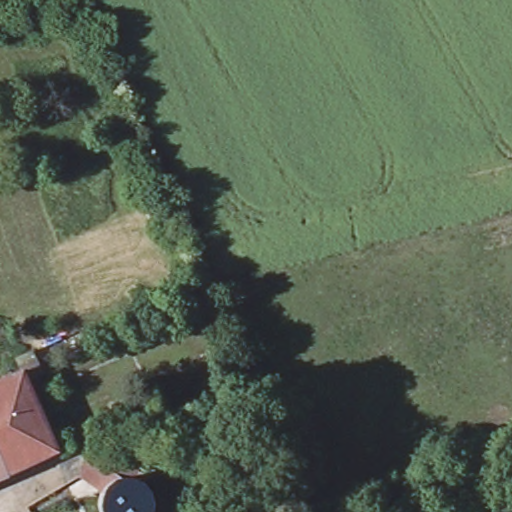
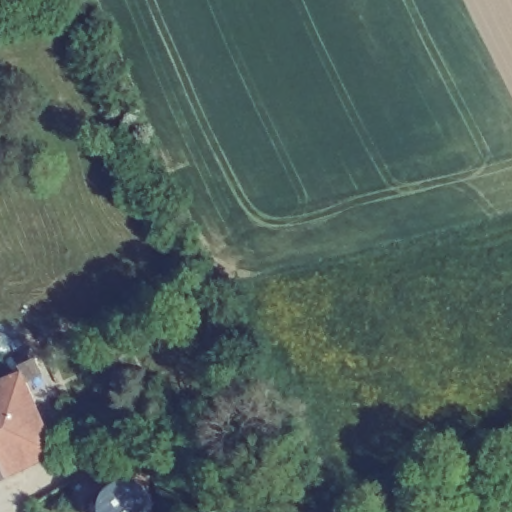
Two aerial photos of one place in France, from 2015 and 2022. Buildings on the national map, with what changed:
unchanged [(0,383),(21,374),(17,367),(33,360),(42,379),(26,385),(57,454),(4,475),(0,467),(0,383)]
unchanged [(150,498),(152,506),(152,512),(100,512),(100,511),(101,500),(102,498),(108,490),(114,486),(88,469),(97,457),(146,481),(138,487),(143,490),(150,498)]
unchanged [(0,467),(4,475),(0,477),(0,467)]

